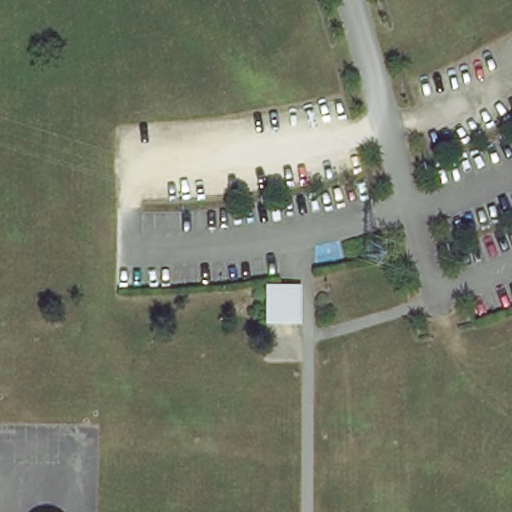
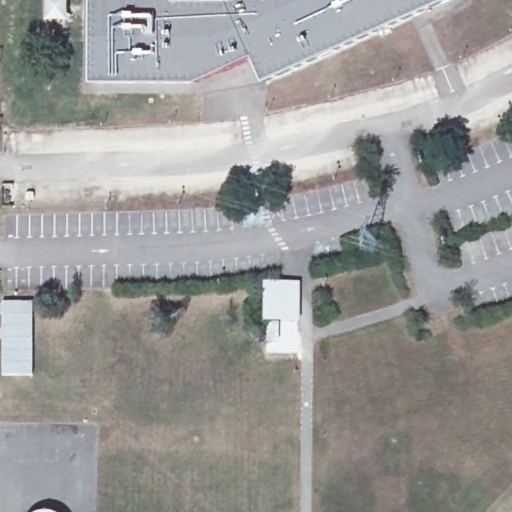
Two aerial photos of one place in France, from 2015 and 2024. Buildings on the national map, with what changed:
new [(255,56),(197,82),(95,83),(95,0),(237,0),(237,1),(240,0),(446,0),(266,81),(255,56)]
unchanged [(294,285),(294,321),(266,320),(268,284),(294,285)]
new [(32,375),(4,376),(3,304),(33,305),(32,375)]
unchanged [(38,511),(46,510),(50,511),(51,512),(37,512),(38,511)]

